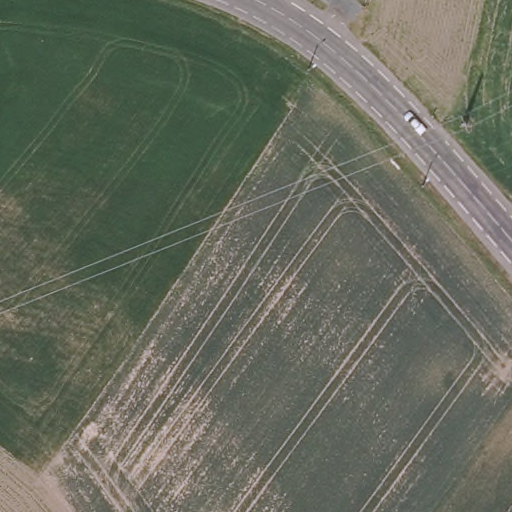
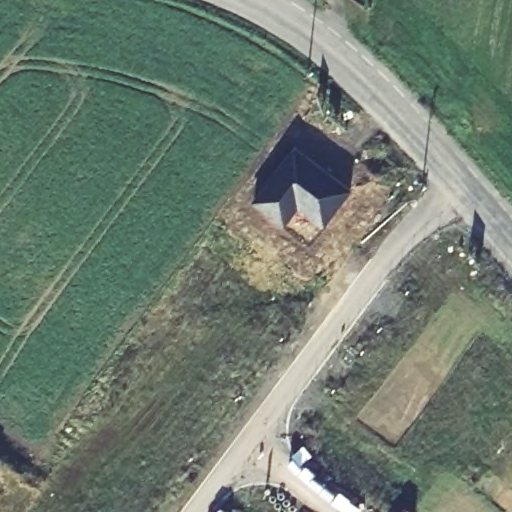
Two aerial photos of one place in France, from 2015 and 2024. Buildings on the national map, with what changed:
new [(352,187),(325,227),(298,207),(285,225),(252,202),(294,145),(352,187)]

